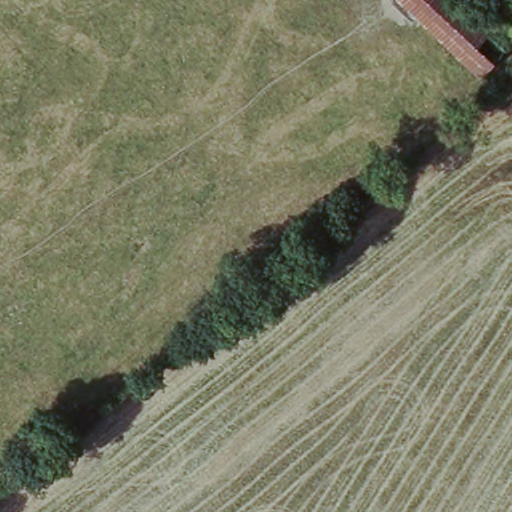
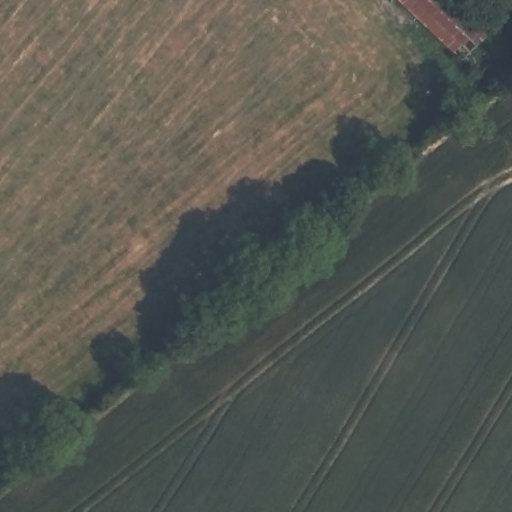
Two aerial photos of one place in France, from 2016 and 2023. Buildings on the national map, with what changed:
unchanged [(480,81),(396,0),(455,0),(508,52),(480,81)]

